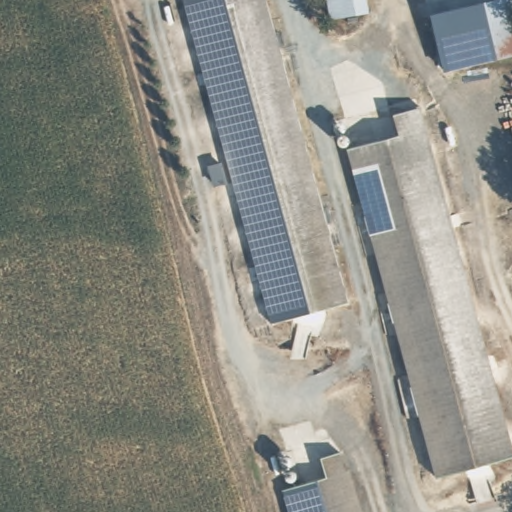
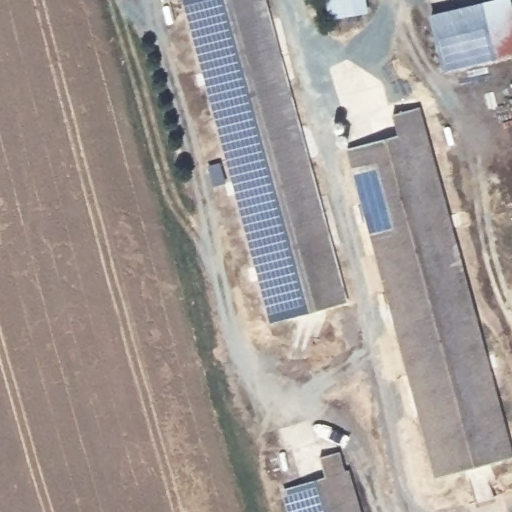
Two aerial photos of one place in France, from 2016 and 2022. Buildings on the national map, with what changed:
unchanged [(270,318),(183,0),(263,0),(345,297),(270,318)]
unchanged [(331,10),(330,0),(362,0),(364,7),(331,10)]
unchanged [(450,60),(430,9),(453,0),(507,0),(512,12),(512,36),(450,60)]
unchanged [(509,448),(436,469),(345,144),(397,128),(391,108),(416,101),(509,448)]
unchanged [(359,512),(296,512),(288,484),(325,472),(322,453),(340,448),(359,512)]

